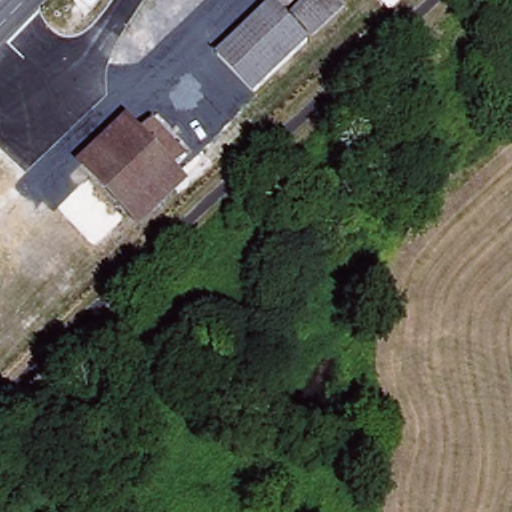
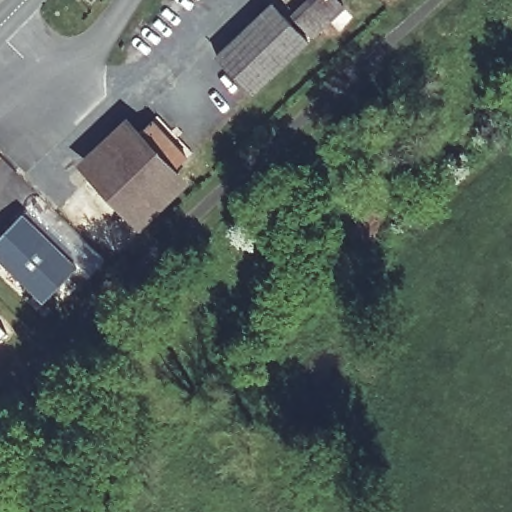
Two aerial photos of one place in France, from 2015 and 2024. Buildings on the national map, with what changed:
unchanged [(282,17),(299,0),(327,0),(336,10),(304,40),(282,17)]
unchanged [(251,95),(216,59),(266,10),(301,45),(251,95)]
unchanged [(173,168),(186,181),(135,230),(74,164),(122,116),(136,131),(148,119),(186,153),(173,168)]
new [(43,302),(0,262),(0,239),(23,215),(78,268),(43,302)]
new [(6,340),(0,346),(0,333),(6,340)]

